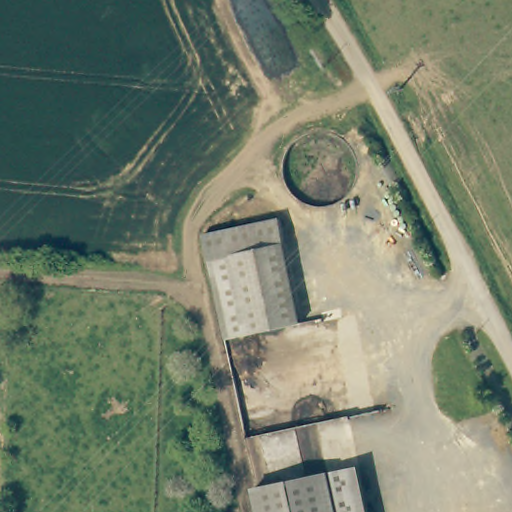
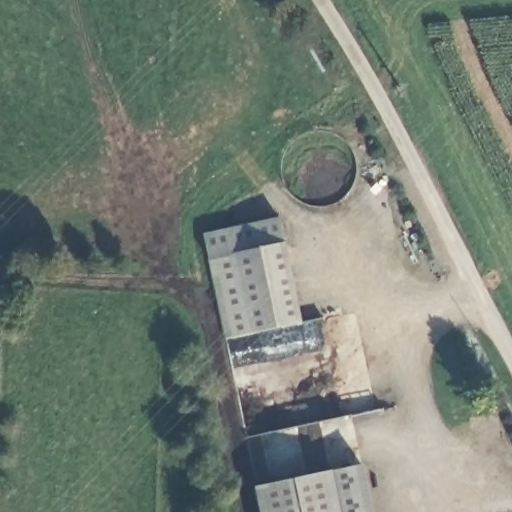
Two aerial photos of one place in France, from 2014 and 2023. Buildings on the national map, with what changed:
unchanged [(199,234),(275,217),(280,242),(204,259),(199,234)]
unchanged [(297,321),(220,337),(204,259),(280,242),(297,321)]
unchanged [(355,464),(365,512),(255,512),(249,486),(355,464)]

